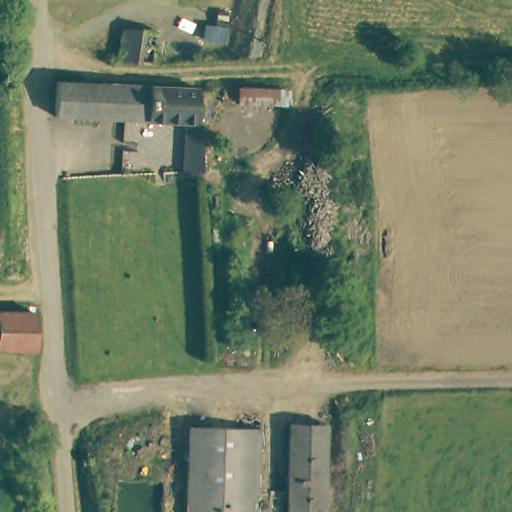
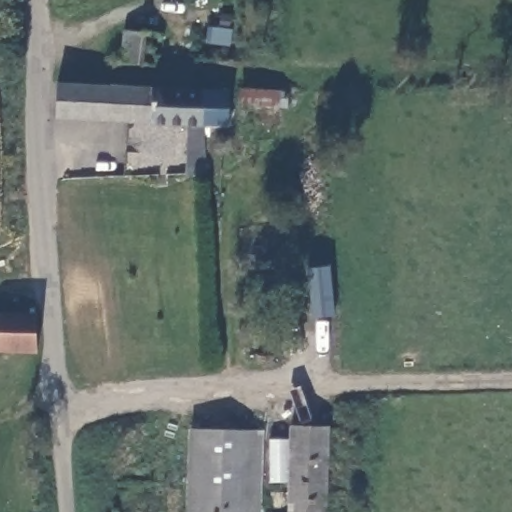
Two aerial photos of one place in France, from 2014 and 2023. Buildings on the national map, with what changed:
unchanged [(126,34),(167,37),(164,67),(124,65),(126,34)]
unchanged [(59,78),(230,90),(231,126),(202,126),(202,183),(187,184),(186,124),(58,113),(59,78)]
new [(333,267),(337,318),(313,320),(311,270),(333,267)]
unchanged [(39,315),(37,326),(35,353),(0,349),(0,313),(23,316),(24,312),(39,315)]
unchanged [(326,425),(326,512),(289,512),(289,426),(326,425)]
unchanged [(260,431),(260,512),(188,512),(188,432),(260,431)]

